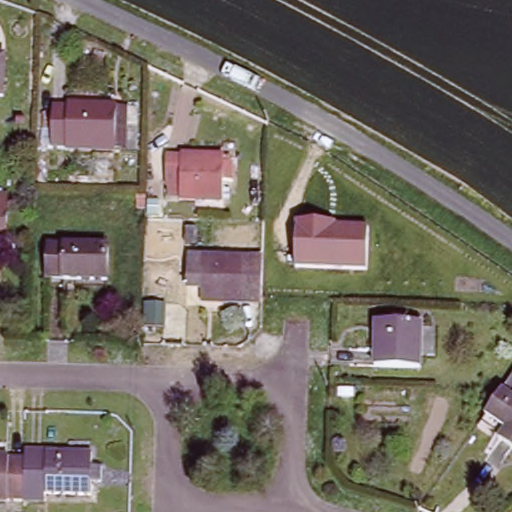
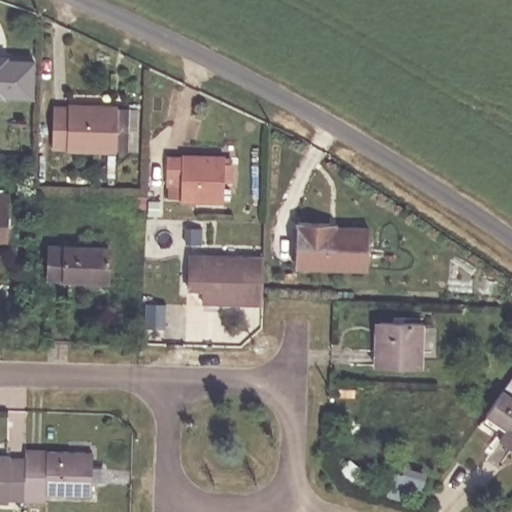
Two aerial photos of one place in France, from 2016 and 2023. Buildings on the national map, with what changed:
unchanged [(114,142),(114,149),(53,148),(53,104),(115,105),(123,105),(123,127),(122,142),(114,142)]
unchanged [(233,179),(220,178),(219,194),(175,194),(175,179),(160,179),(160,151),(233,152),(233,179)]
unchanged [(0,240),(0,195),(8,195),(7,240),(0,240)]
unchanged [(367,227),(367,268),(295,263),(295,225),(367,227)]
unchanged [(47,247),(109,249),(108,280),(47,278),(47,247)]
unchanged [(258,298),(258,303),(203,302),(203,287),(190,287),(190,256),(204,257),(204,248),(220,249),(220,257),(263,257),(262,298),(258,298)]
unchanged [(420,370),(375,369),(375,355),(382,355),(383,326),(397,326),(397,316),(410,317),(410,326),(420,326),(420,370)]
unchanged [(490,407),(507,382),(512,375),(512,438),(502,431),(503,428),(486,414),(490,407)]
unchanged [(348,384),(348,395),(335,395),(335,384),(348,384)]
unchanged [(23,457),(23,448),(91,449),(90,461),(102,462),(101,476),(90,476),(90,494),(46,493),(46,500),(23,500),(23,457)]
unchanged [(0,499),(0,457),(23,457),(23,500),(0,499)]

